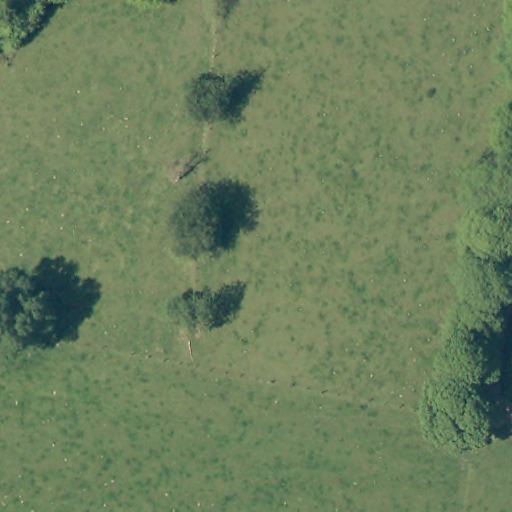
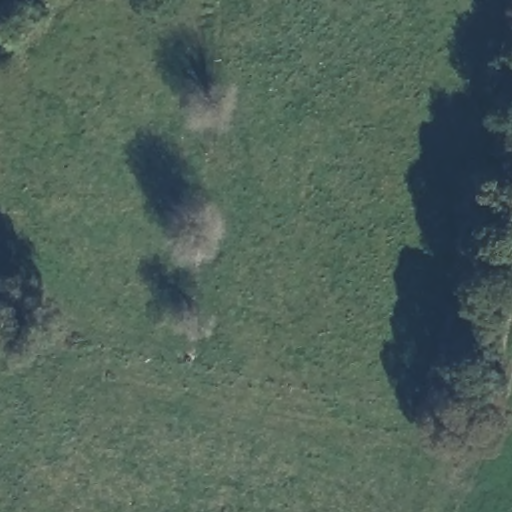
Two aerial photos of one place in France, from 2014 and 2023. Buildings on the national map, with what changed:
[]

